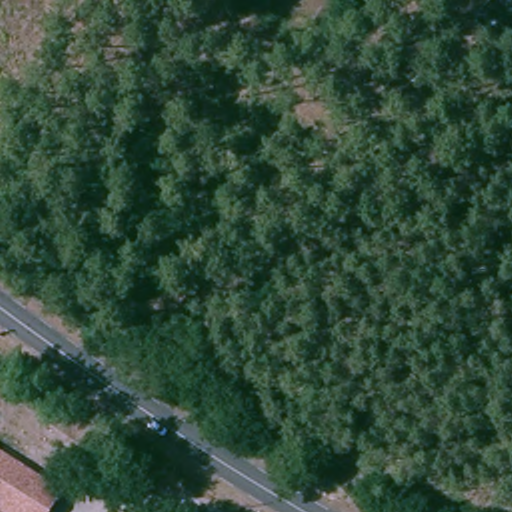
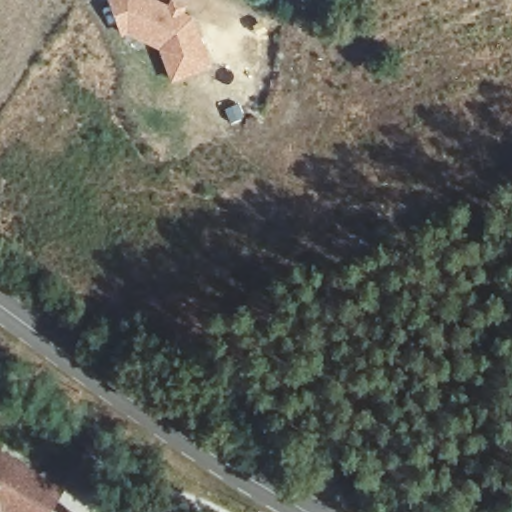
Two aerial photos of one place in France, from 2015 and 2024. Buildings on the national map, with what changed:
new [(168,5),(170,0),(176,0),(187,6),(184,15),(194,19),(213,70),(172,83),(160,50),(127,35),(120,35),(108,0),(155,0),(168,5)]
unchanged [(275,0),(305,0),(300,14),(275,0)]
unchanged [(59,493),(46,512),(2,512),(0,510),(0,455),(59,493)]

